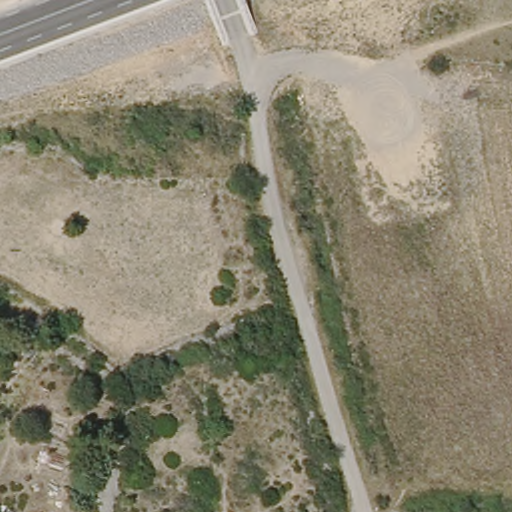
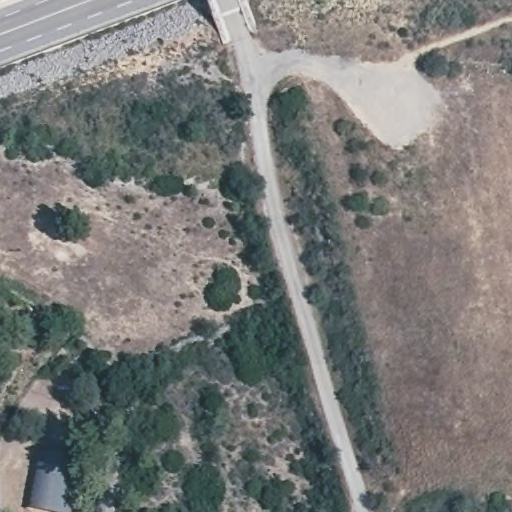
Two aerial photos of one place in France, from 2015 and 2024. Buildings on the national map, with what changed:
demolished [(49,328),(43,342),(24,331),(32,316),(49,328)]
new [(41,452),(80,460),(71,512),(39,512),(29,510),(41,452)]

